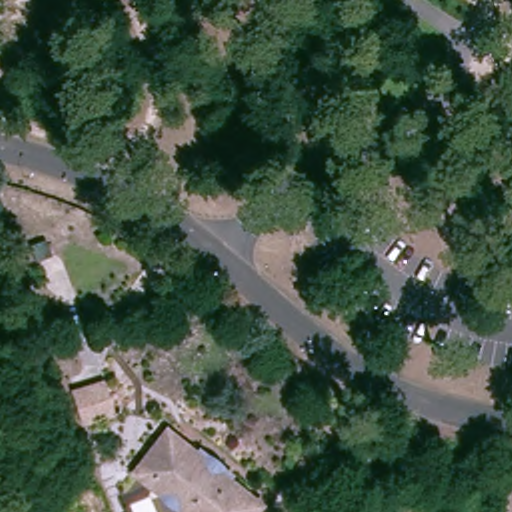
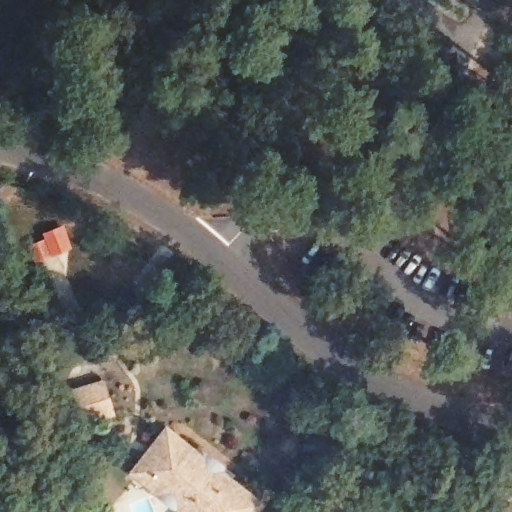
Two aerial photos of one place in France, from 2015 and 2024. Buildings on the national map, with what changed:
unchanged [(101,374),(112,414),(75,424),(67,383),(101,374)]
unchanged [(139,482),(168,447),(179,456),(195,469),(205,468),(223,482),(259,511),(258,512),(176,512),(151,492),(139,482)]

